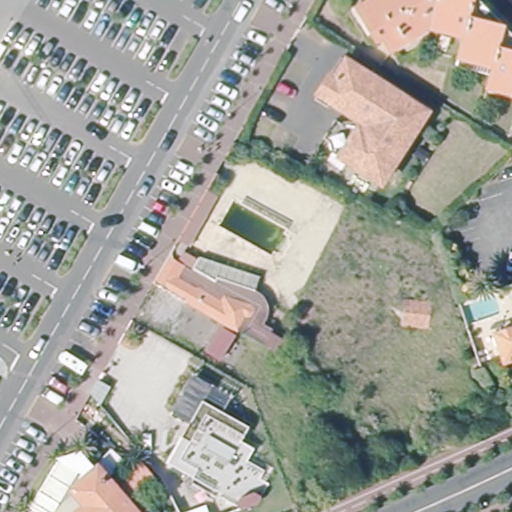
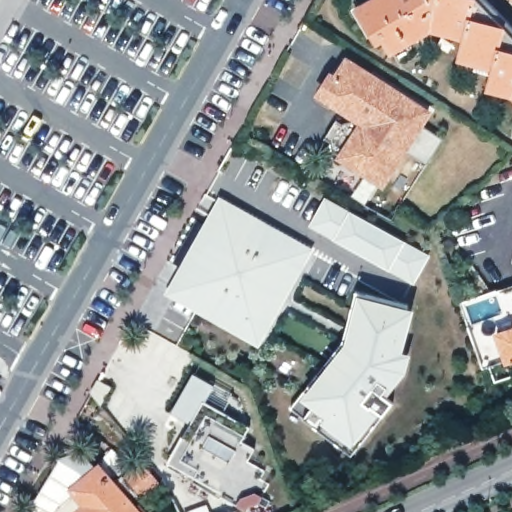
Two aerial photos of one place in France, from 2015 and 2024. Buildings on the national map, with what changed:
unchanged [(490,81),(490,74),(491,53),(460,52),(460,44),(460,23),(434,22),(395,43),(388,29),(383,32),(371,7),(367,0),(368,0),(492,0),(512,20),(512,81),(490,81)]
unchanged [(512,0),(512,2),(510,0),(512,0)]
unchanged [(348,125),(356,125),(360,119),(339,106),(337,109),(321,100),(348,55),(355,59),(411,94),(435,109),(427,123),(392,181),(341,151),(340,141),(333,138),(342,122),(348,125)]
new [(219,194),(313,247),(258,345),(163,293),(219,194)]
new [(308,225),(325,196),(430,254),(414,283),(308,225)]
demolished [(193,246),(189,254),(200,261),(202,259),(262,275),(258,294),(263,300),(264,304),(263,310),(256,324),(281,338),(275,351),(158,283),(183,239),(193,246)]
new [(414,307),(402,351),(409,352),(404,370),(384,395),(392,399),(350,453),(289,409),(303,391),(303,397),(346,342),(359,294),(414,307)]
demolished [(429,306),(427,326),(404,324),(408,303),(429,306)]
unchanged [(505,353),(495,329),(512,321),(512,350),(505,353)]
unchanged [(119,372),(99,407),(91,396),(109,365),(119,372)]
unchanged [(192,373),(214,383),(206,399),(204,398),(192,418),(171,408),(192,373)]
unchanged [(237,438),(249,446),(243,457),(258,467),(254,475),(262,480),(250,500),(237,506),(217,493),(219,491),(167,457),(204,398),(245,423),(237,438)]
unchanged [(148,484),(137,495),(120,477),(132,466),(148,484)]
unchanged [(55,510),(72,496),(67,490),(92,468),(108,487),(118,479),(134,497),(124,506),(129,512),(55,512),(55,510)]

